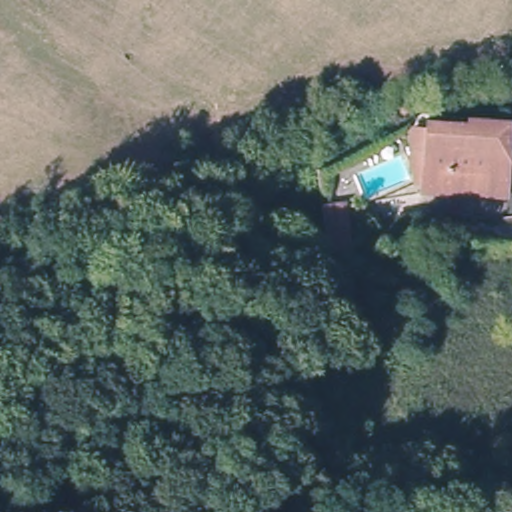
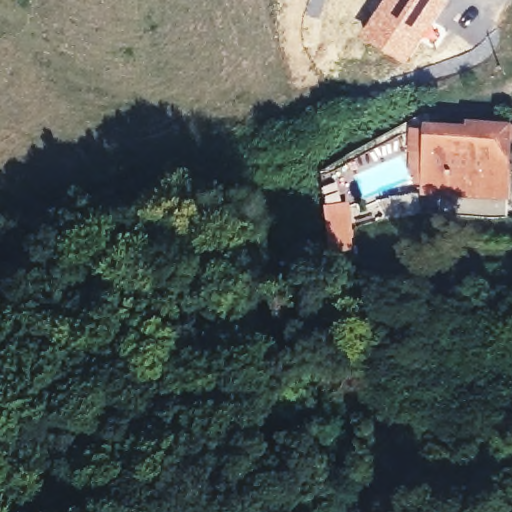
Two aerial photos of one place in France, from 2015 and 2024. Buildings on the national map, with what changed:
new [(382,0),(448,0),(404,61),(360,33),(382,0)]
unchanged [(436,152),(420,151),(421,130),(437,130),(469,131),(469,123),(510,124),(512,124),(512,141),(510,141),(508,182),(507,200),(475,199),(433,196),(436,152)]
unchanged [(356,252),(337,253),(333,212),(351,210),(356,252)]

